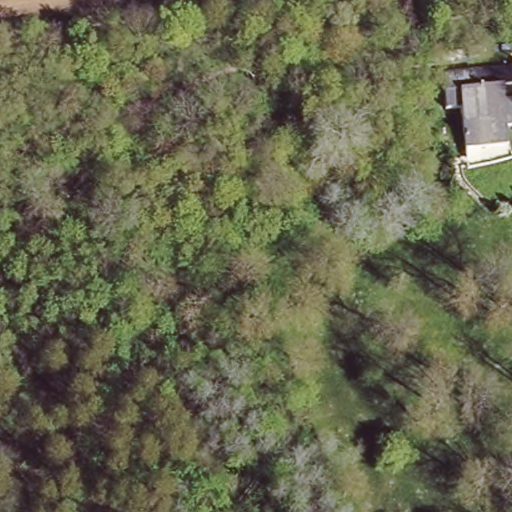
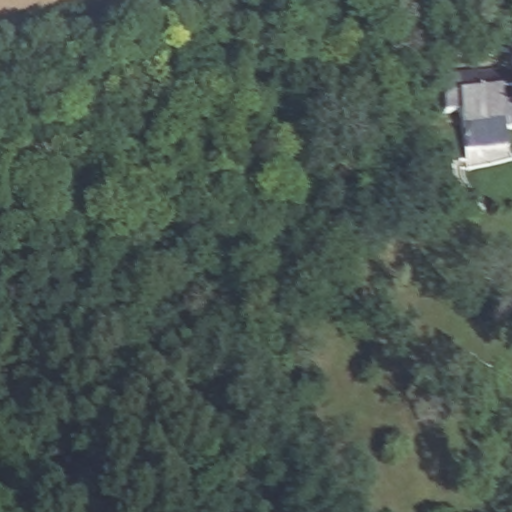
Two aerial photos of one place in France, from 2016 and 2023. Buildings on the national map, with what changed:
unchanged [(511,85),(496,87),(498,105),(512,102),(512,125),(501,126),(504,145),(461,151),(454,112),(441,114),(436,79),(508,68),(511,85)]

